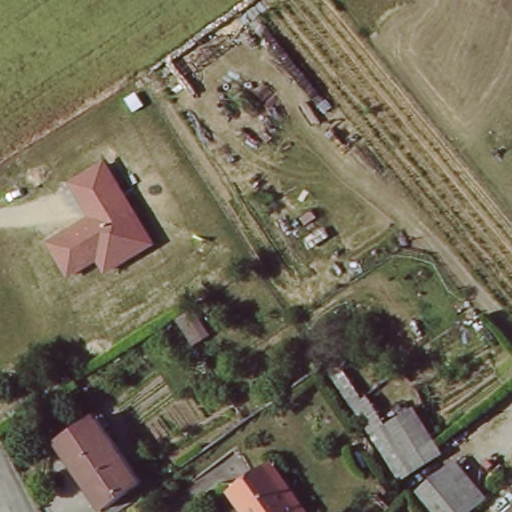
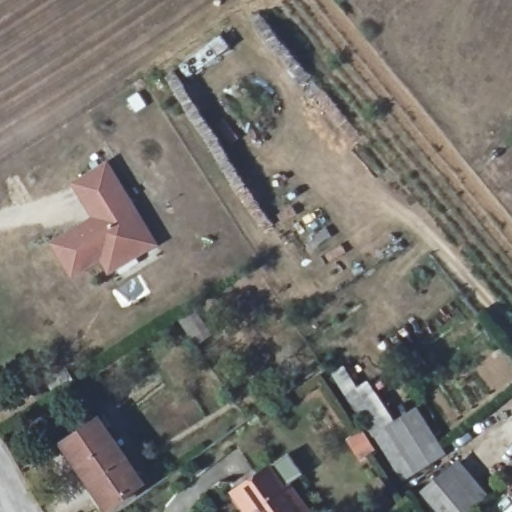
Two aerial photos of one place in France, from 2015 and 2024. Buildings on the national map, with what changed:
unchanged [(90,216),(72,184),(107,163),(157,245),(109,273),(101,261),(73,278),(50,242),(90,216)]
unchanged [(352,372),(369,396),(373,394),(393,424),(420,403),(452,452),(405,482),(339,380),(352,372)]
unchanged [(103,508),(61,442),(102,417),(146,480),(103,508)]
unchanged [(255,512),(239,489),(273,465),(305,512),(255,512)]
unchanged [(462,512),(443,512),(426,491),(453,470),(477,500),(462,512)]
unchanged [(512,512),(510,512),(512,510),(512,512)]

